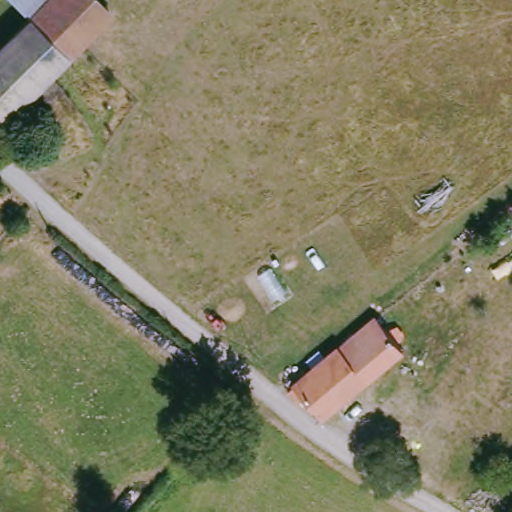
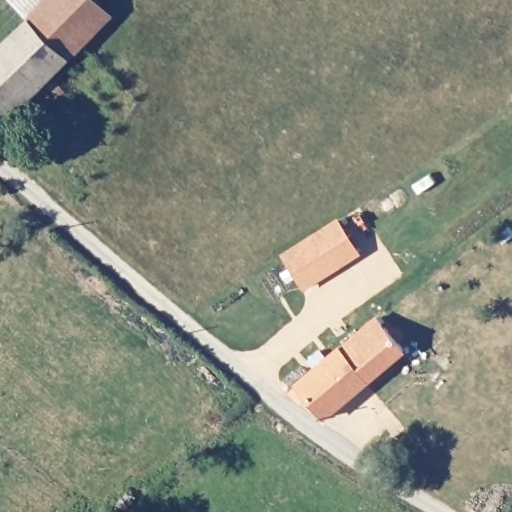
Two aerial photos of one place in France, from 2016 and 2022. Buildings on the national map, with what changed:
unchanged [(16,0),(59,0),(35,22),(15,1),(16,0)]
unchanged [(74,65),(35,22),(59,0),(99,0),(119,22),(74,65)]
unchanged [(0,125),(0,55),(35,22),(74,65),(5,130),(0,125)]
new [(304,291),(281,255),(337,218),(361,254),(304,291)]
unchanged [(394,339),(401,335),(405,342),(400,347),(407,355),(325,420),(309,401),(305,405),(292,396),(382,323),(394,339)]

